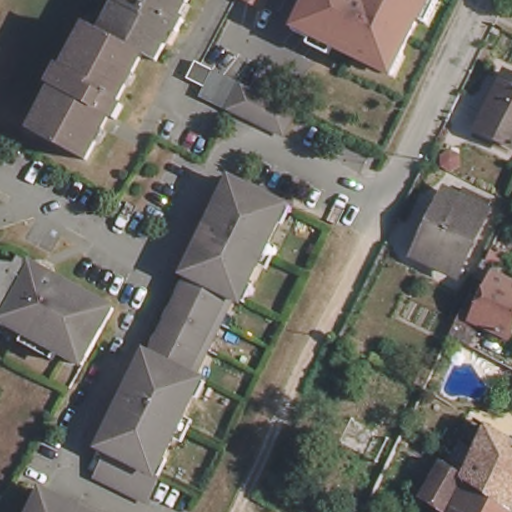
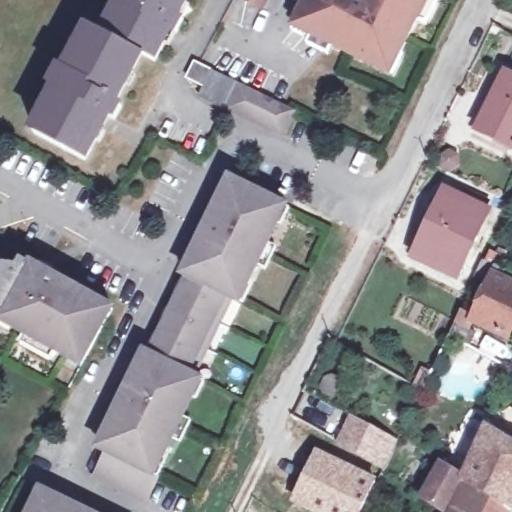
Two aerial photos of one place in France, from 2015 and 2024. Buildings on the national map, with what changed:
unchanged [(185,15),(190,17),(182,30),(177,27),(159,59),(147,52),(120,100),(127,104),(120,117),(113,113),(89,157),(39,130),(63,86),(56,82),(65,65),(72,69),(96,25),(110,31),(126,0),(125,0),(192,0),(185,15)]
unchanged [(262,12),(241,0),(268,0),(262,12)]
unchanged [(430,27),(421,22),(394,79),(332,50),(329,57),(309,47),(312,38),(291,28),(306,0),(443,0),(430,27)]
unchanged [(286,140),(229,112),(225,110),(204,100),(208,90),(192,81),(199,66),(204,69),(215,74),(238,85),(242,86),(298,114),(286,140)]
unchanged [(490,107),(506,75),(512,79),(512,146),(487,133),(479,129),(490,107)]
unchanged [(162,470),(150,495),(98,470),(110,445),(102,440),(120,402),(117,401),(127,382),(129,383),(141,359),(148,345),(154,348),(192,270),(187,267),(205,229),(202,227),(212,210),(214,211),(227,185),(233,172),(239,176),(284,199),(275,215),(282,219),(252,277),(245,274),(238,290),(232,286),(192,365),(199,368),(190,384),(197,387),(165,452),(157,468),(162,470)]
unchanged [(414,253),(445,190),(459,197),(465,185),(490,197),(484,210),(454,273),(414,253)]
unchanged [(25,258),(37,266),(42,264),(52,269),(52,274),(102,303),(111,308),(100,328),(85,356),(80,363),(65,355),(56,350),(51,358),(20,341),(25,332),(15,327),(20,318),(1,302),(0,303),(0,270),(17,272),(25,258)]
unchanged [(506,340),(475,322),(494,285),(489,281),(495,268),(501,271),(497,280),(512,288),(512,327),(506,340)]
unchanged [(475,330),(469,343),(447,331),(454,319),(475,330)]
demolished [(410,395),(366,482),(330,463),(373,373),(410,395)]
new [(349,414),(397,439),(383,468),(335,442),(349,414)]
unchanged [(469,438),(480,416),(512,435),(512,498),(471,470),(469,469),(481,443),(469,438)]
new [(376,477),(360,512),(312,512),(291,502),(315,448),(376,477)]
unchanged [(429,488),(445,453),(469,469),(471,470),(459,495),(452,501),(450,503),(441,512),(438,512),(422,504),(429,488)]
unchanged [(511,512),(472,512),(464,507),(452,501),(459,495),(471,470),(512,498),(512,510),(511,512)]
unchanged [(82,501),(84,498),(102,507),(101,510),(106,512),(30,512),(44,482),(82,501)]
unchanged [(472,512),(461,512),(464,507),(472,512)]

